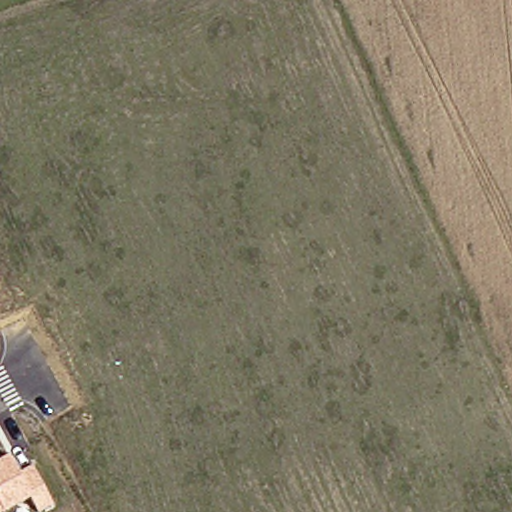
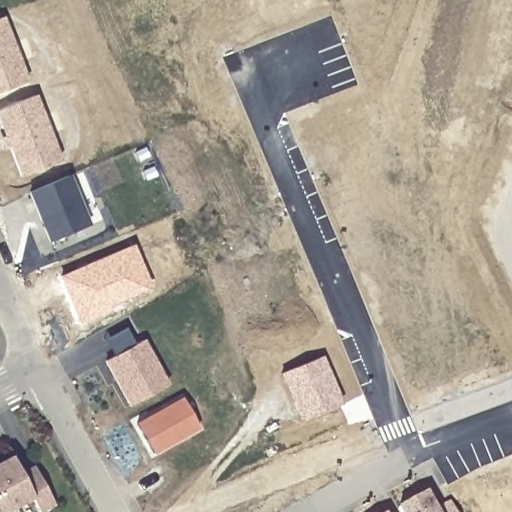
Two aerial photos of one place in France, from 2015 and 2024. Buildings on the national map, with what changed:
new [(0,93),(0,17),(2,16),(28,82),(0,93)]
new [(21,178),(8,148),(0,151),(0,150),(0,137),(3,135),(0,127),(0,108),(35,94),(62,161),(21,178)]
new [(72,177),(92,225),(55,241),(35,193),(72,177)]
new [(151,288),(105,307),(107,311),(77,324),(56,276),(133,244),(151,288)]
new [(147,339),(171,383),(133,404),(109,359),(147,339)]
new [(342,405),(298,423),(278,373),(322,356),(342,405)]
new [(203,425),(155,451),(139,422),(187,396),(203,425)]
unchanged [(38,512),(29,497),(2,512),(0,512),(0,460),(9,455),(19,474),(33,466),(54,504),(43,512),(38,512)]
new [(453,504),(457,512),(409,512),(406,507),(431,494),(440,510),(453,504)]

